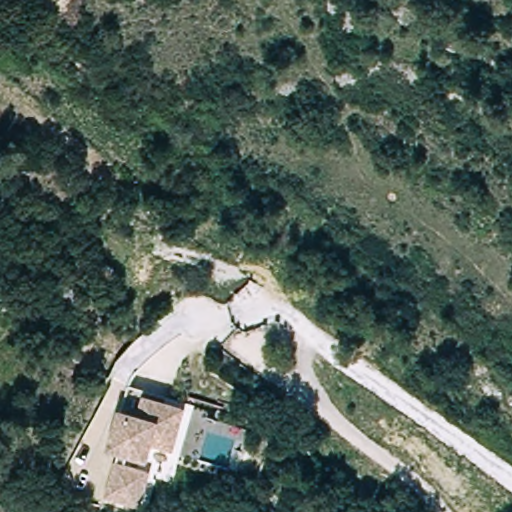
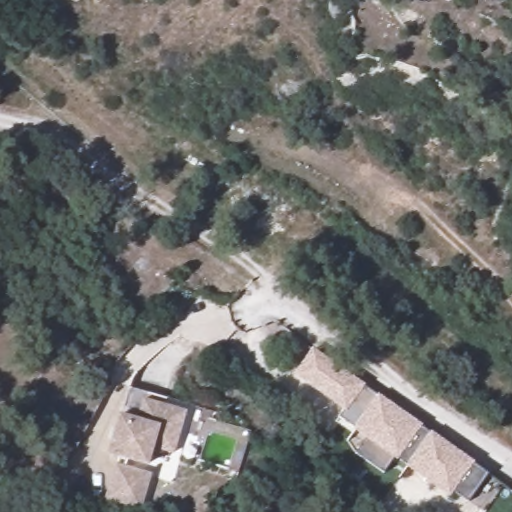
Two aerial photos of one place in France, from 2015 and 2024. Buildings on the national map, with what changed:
new [(365,387),(364,388),(376,396),(377,393),(423,426),(422,427),(429,433),(431,432),(475,463),(474,466),(488,477),(469,504),(454,492),(450,498),(395,458),(384,473),(356,455),(366,439),(354,430),(355,428),(341,418),(345,413),(346,412),(293,375),(311,347),(365,387)]
unchanged [(173,457),(156,452),(151,469),(131,463),(128,472),(153,480),(143,512),(140,512),(110,502),(123,461),(113,457),(131,398),(133,392),(171,403),(170,407),(169,411),(189,417),(176,457),(173,457)]

